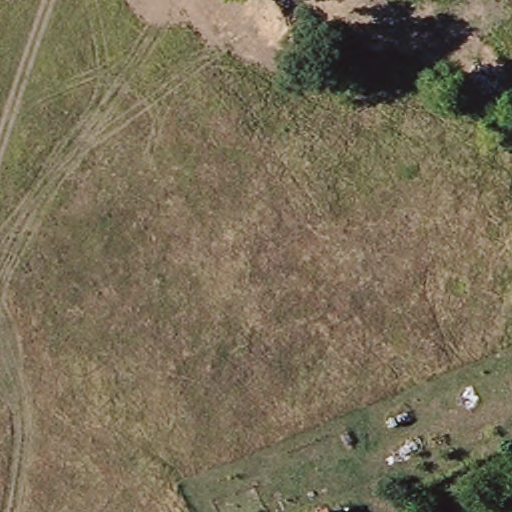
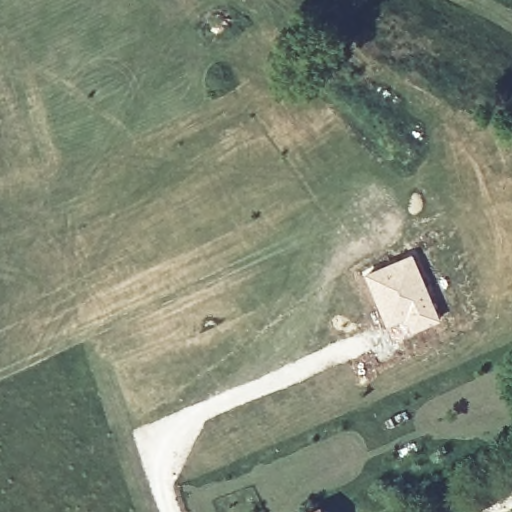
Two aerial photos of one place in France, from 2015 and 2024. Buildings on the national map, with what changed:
new [(413,252),(442,318),(405,335),(398,323),(388,328),(363,274),(413,252)]
unchanged [(324,512),(323,512),(324,511),(324,512)]

